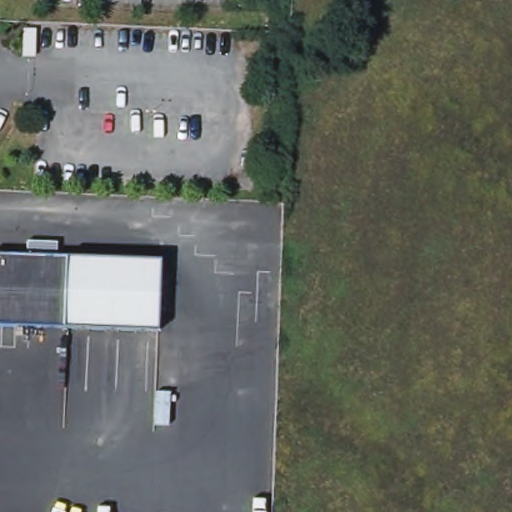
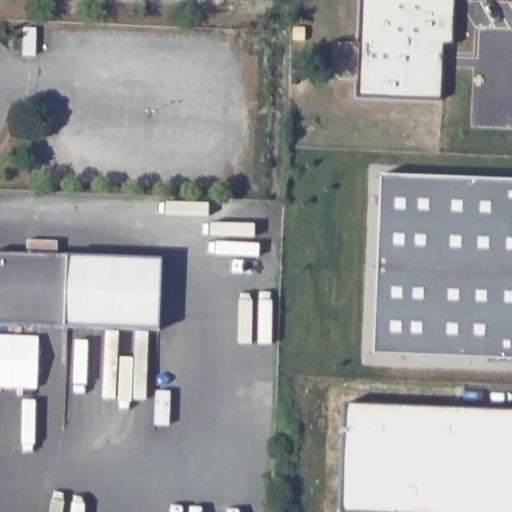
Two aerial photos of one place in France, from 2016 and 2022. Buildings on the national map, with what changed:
new [(361,0),(455,0),(453,47),(445,47),(442,102),(357,98),(361,0)]
new [(512,182),(512,362),(372,355),(380,176),(512,182)]
unchanged [(60,324),(0,322),(0,250),(62,252),(60,324)]
unchanged [(159,258),(159,274),(171,273),(170,305),(160,306),(159,328),(60,324),(62,252),(159,258)]
new [(340,512),(344,404),(512,411),(512,512),(340,512)]

